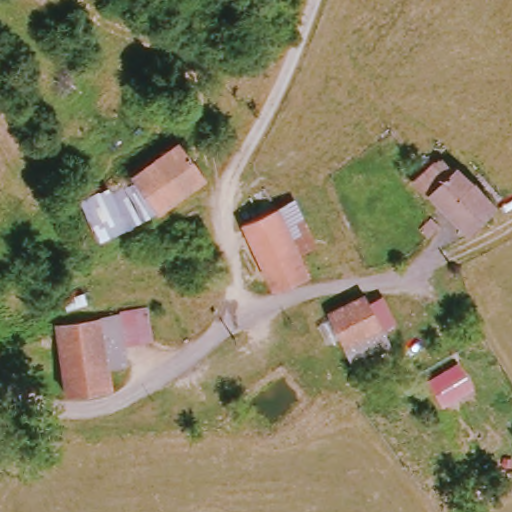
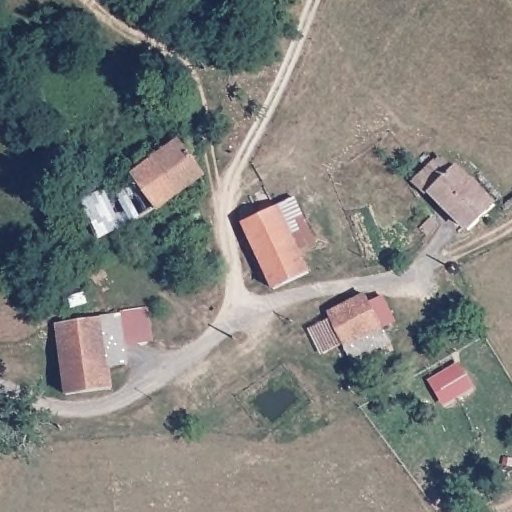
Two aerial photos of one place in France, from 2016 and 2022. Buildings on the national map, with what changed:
unchanged [(174,144),(180,152),(185,149),(191,150),(192,157),(188,161),(200,178),(178,196),(152,160),(174,144)]
unchanged [(178,196),(154,213),(134,184),(130,178),(152,160),(178,196)]
unchanged [(464,232),(414,185),(432,164),(452,168),(491,203),(464,232)]
unchanged [(154,213),(97,245),(75,206),(134,184),(154,213)]
unchanged [(274,207),(292,199),(313,246),(295,254),(274,207)]
unchanged [(270,291),(239,223),(274,207),(295,254),(303,276),(270,291)]
unchanged [(384,305),(395,326),(382,332),(380,334),(346,351),(330,319),(367,302),(372,311),(384,305)]
unchanged [(104,320),(132,310),(140,331),(116,339),(123,359),(105,365),(92,324),(104,320)]
unchanged [(92,324),(105,365),(112,387),(66,403),(45,340),(92,324)]
unchanged [(380,334),(392,358),(358,375),(346,351),(380,334)]
unchanged [(472,390),(441,408),(425,383),(455,363),(472,390)]

